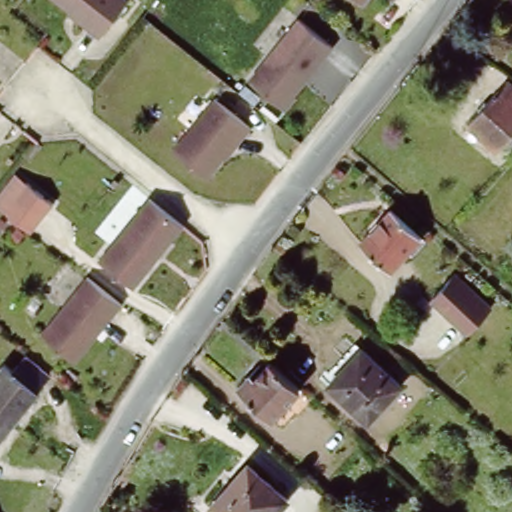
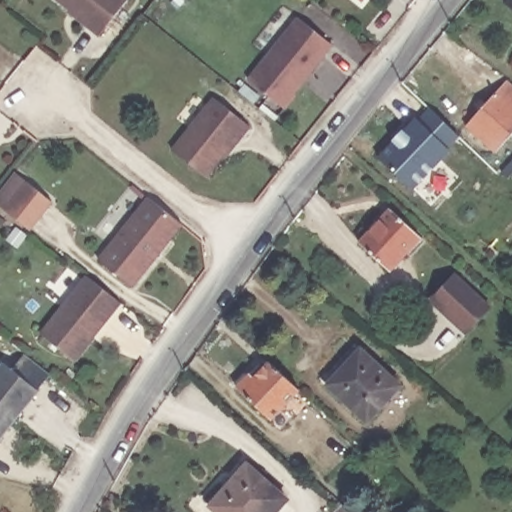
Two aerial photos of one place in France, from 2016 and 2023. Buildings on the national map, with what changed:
unchanged [(90,21),(63,0),(128,0),(100,34),(87,24),(90,21)]
unchanged [(355,0),(371,0),(365,8),(355,0)]
unchanged [(245,76),(296,13),(330,40),(290,89),(292,91),(282,105),(245,76)]
unchanged [(505,86),(512,92),(512,138),(495,158),(465,131),(505,86)]
unchanged [(215,96),(250,124),(240,137),(237,135),(205,175),(173,149),(215,96)]
new [(431,110),(460,137),(449,149),(450,151),(414,191),(380,160),(417,120),(420,122),(431,110)]
unchanged [(30,230),(0,205),(0,191),(15,170),(54,201),(30,230)]
unchanged [(135,284),(100,257),(150,194),(184,221),(135,284)]
unchanged [(367,241),(364,237),(372,228),(377,231),(390,216),(421,245),(391,278),(360,250),(367,241)]
unchanged [(430,300),(456,272),(492,305),(467,333),(430,300)]
unchanged [(123,300),(77,358),(42,331),(88,273),(123,300)]
unchanged [(42,383),(43,384),(0,439),(0,366),(7,356),(17,363),(29,348),(54,368),(42,383)]
unchanged [(361,355),(400,391),(367,428),(327,392),(361,355)]
unchanged [(295,392),(267,422),(231,390),(244,376),(249,380),(264,364),(295,392)]
unchanged [(247,467),(288,502),(279,512),(215,512),(210,508),(247,467)]
unchanged [(509,485),(512,481),(512,488),(509,485)]
unchanged [(351,512),(332,512),(340,503),(351,512)]

